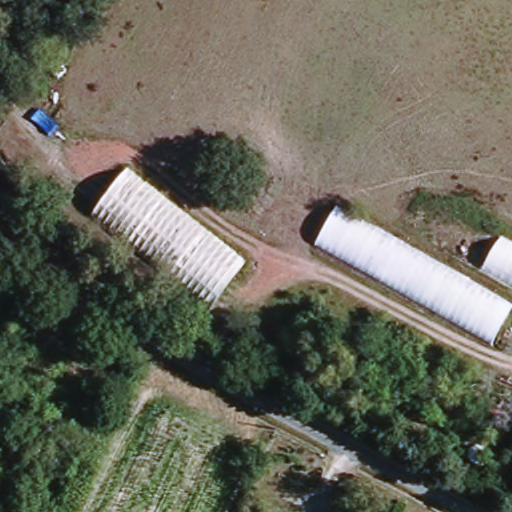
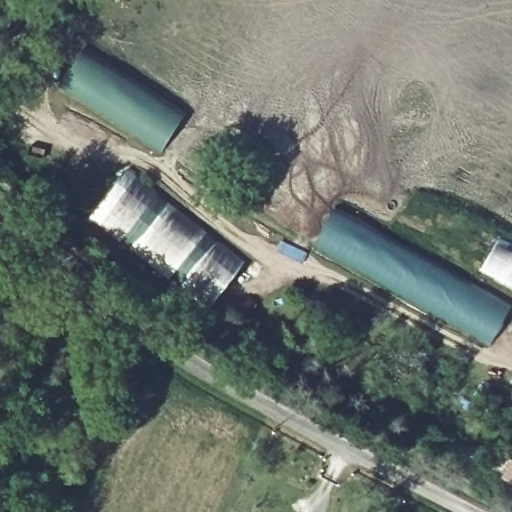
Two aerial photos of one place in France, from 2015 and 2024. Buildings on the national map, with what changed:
new [(159,151),(60,88),(84,48),(185,111),(159,151)]
unchanged [(172,280),(97,222),(134,175),(209,229),(172,280)]
unchanged [(342,213),(353,219),(512,305),(496,332),(489,342),(319,249),(329,233),(342,213)]
unchanged [(249,258),(212,309),(172,280),(209,229),(249,258)]
unchanged [(512,243),(512,289),(483,273),(501,237),(512,243)]

